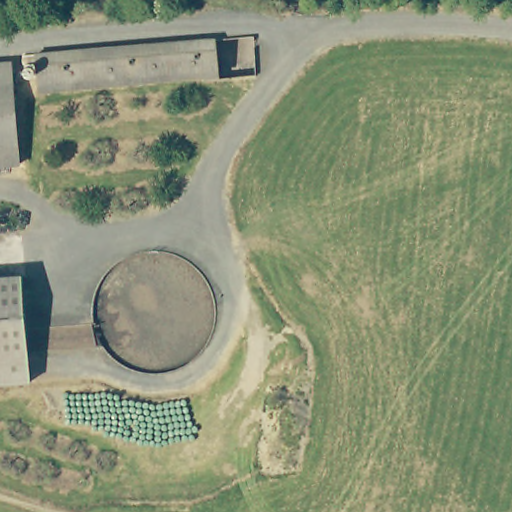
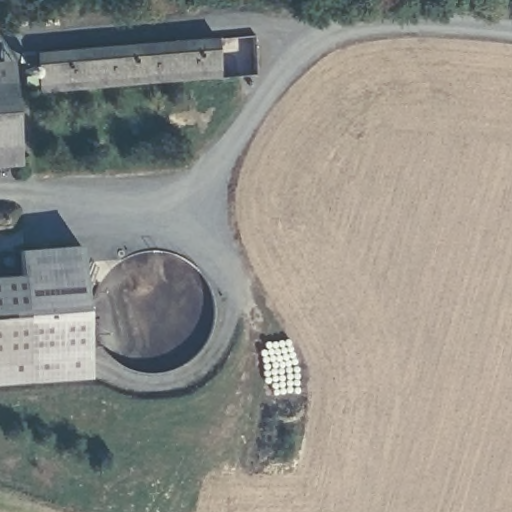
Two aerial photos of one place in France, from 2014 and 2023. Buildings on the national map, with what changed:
unchanged [(36,53),(215,37),(218,77),(39,92),(36,53)]
unchanged [(14,82),(0,84),(0,62),(11,61),(14,82)]
unchanged [(0,165),(0,84),(14,82),(19,164),(0,165)]
new [(79,245),(89,377),(29,381),(20,276),(19,248),(79,245)]
unchanged [(29,381),(0,383),(0,277),(20,276),(29,381)]

